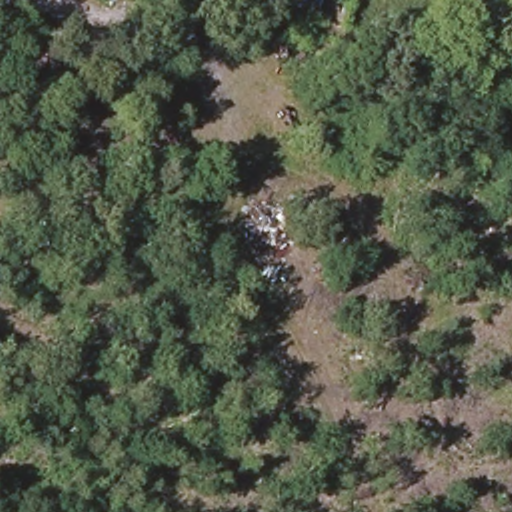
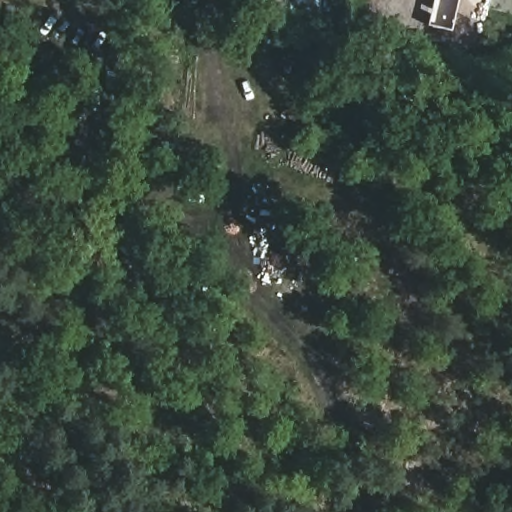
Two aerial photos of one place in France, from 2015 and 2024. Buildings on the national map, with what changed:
new [(451,31),(427,25),(433,0),(458,0),(451,31)]

